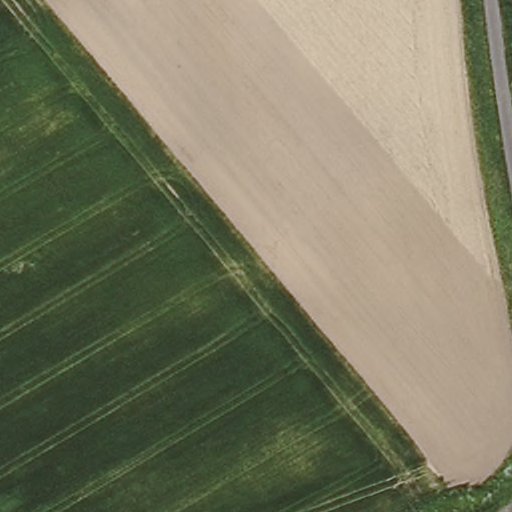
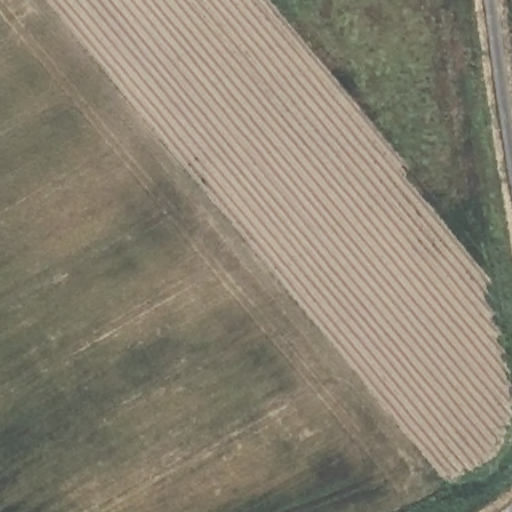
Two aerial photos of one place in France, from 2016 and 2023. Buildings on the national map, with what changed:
[]

